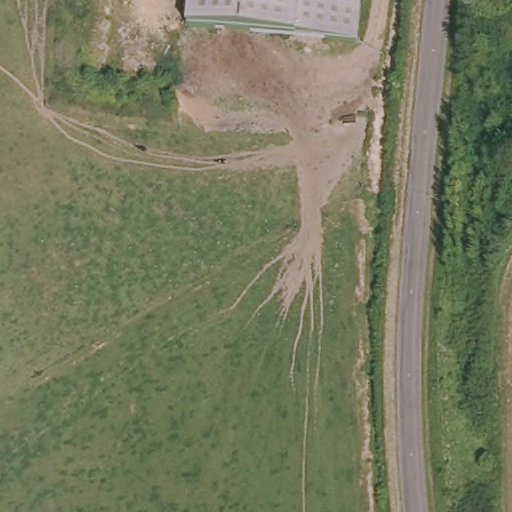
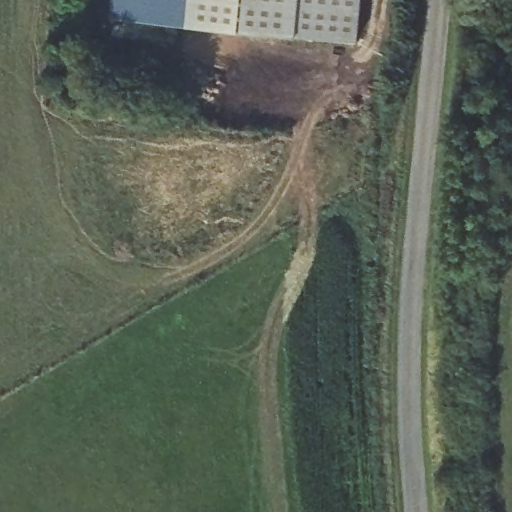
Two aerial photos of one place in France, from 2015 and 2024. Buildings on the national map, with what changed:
new [(192,0),(190,27),(110,18),(112,0),(192,0)]
unchanged [(297,35),(190,27),(192,0),(360,0),(357,42),(297,35)]

